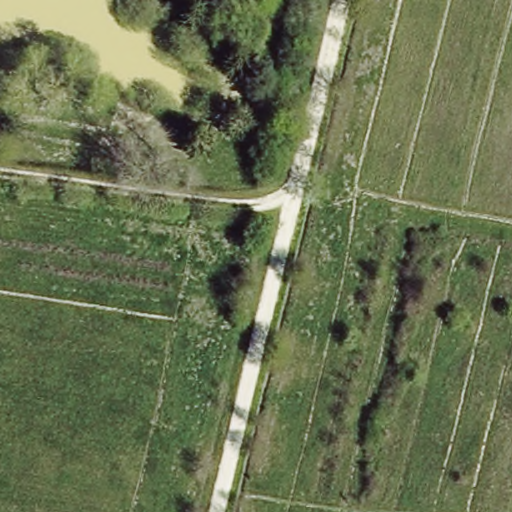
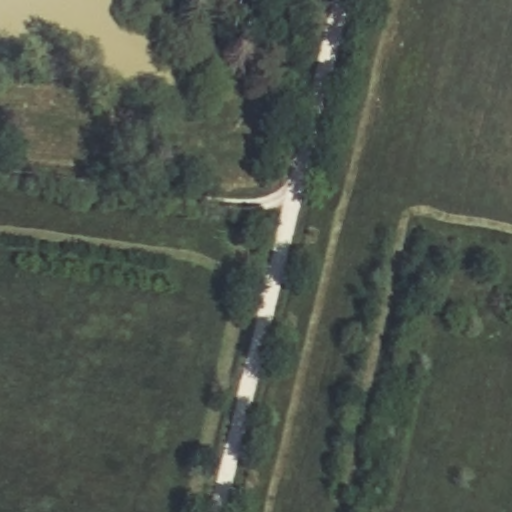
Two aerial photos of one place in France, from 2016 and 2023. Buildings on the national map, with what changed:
[]

